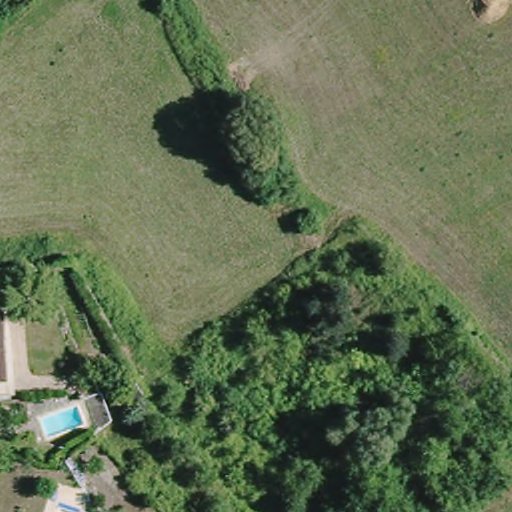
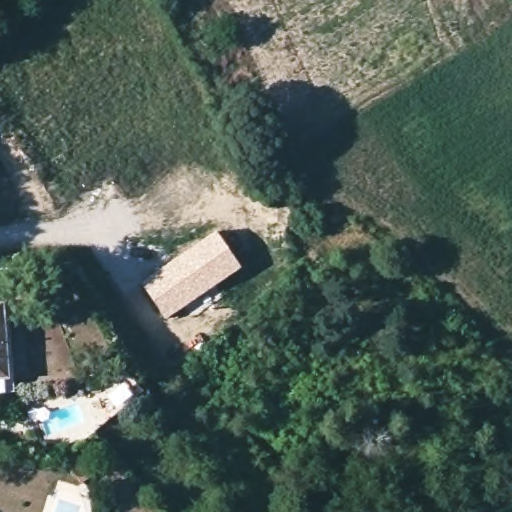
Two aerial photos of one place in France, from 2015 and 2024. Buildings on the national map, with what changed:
new [(169,261),(215,230),(240,267),(164,319),(140,283),(169,261)]
unchanged [(0,380),(0,305),(4,305),(10,379),(0,380)]

